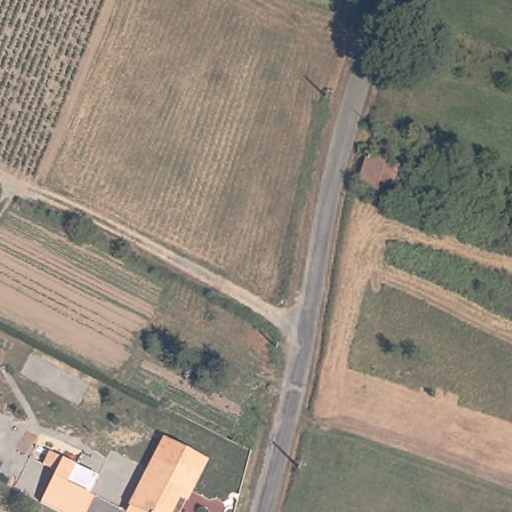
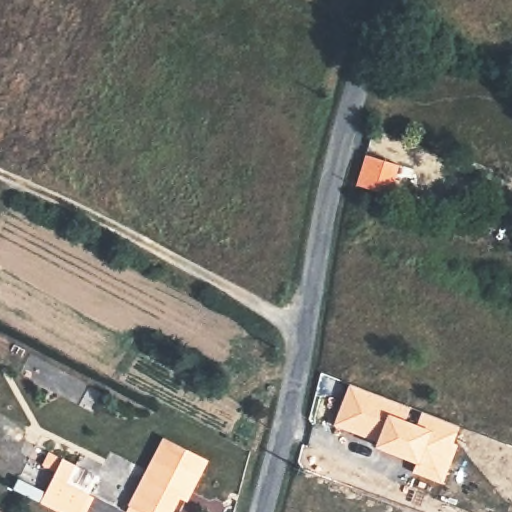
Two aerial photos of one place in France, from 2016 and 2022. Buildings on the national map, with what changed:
unchanged [(393,198),(375,192),(356,185),(366,156),(383,163),(396,167),(390,185),(396,187),(393,198)]
new [(347,381),(410,406),(403,418),(415,422),(420,411),(460,426),(440,483),(411,473),(413,462),(374,448),(377,440),(331,423),(347,381)]
unchanged [(180,498),(173,512),(142,512),(131,507),(148,473),(165,439),(208,460),(192,492),(187,502),(180,498)]
unchanged [(65,456),(79,462),(70,479),(93,491),(82,512),(69,512),(44,500),(65,456)]

